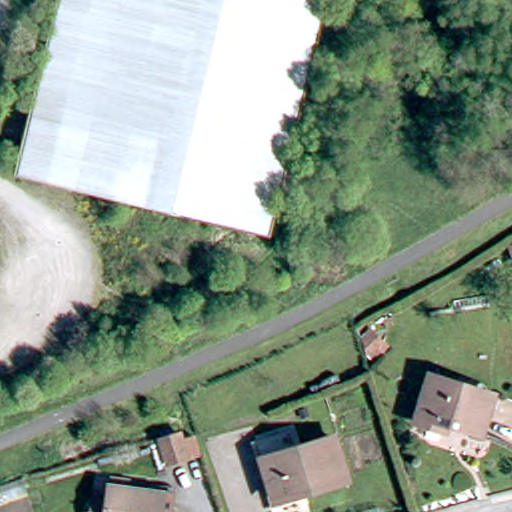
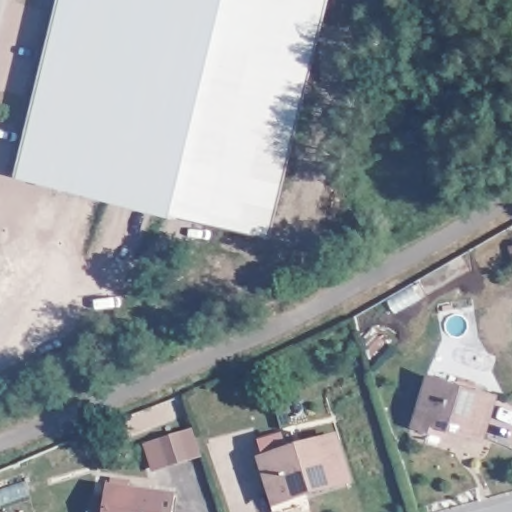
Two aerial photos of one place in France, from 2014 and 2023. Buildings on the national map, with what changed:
unchanged [(266,235),(25,178),(68,0),(327,0),(266,235)]
unchanged [(441,419),(438,426),(418,419),(432,376),(460,384),(462,378),(475,382),(473,389),(495,396),(483,432),(470,428),(454,423),(441,419)]
unchanged [(182,435),(184,442),(196,438),(201,455),(171,465),(163,441),(182,435)]
unchanged [(310,511),(307,512),(278,512),(259,449),(294,438),(300,458),(336,447),(348,488),(307,501),(310,511)]
unchanged [(174,512),(89,512),(92,491),(107,493),(110,481),(112,473),(130,476),(128,484),(173,491),(171,508),(174,512)]

